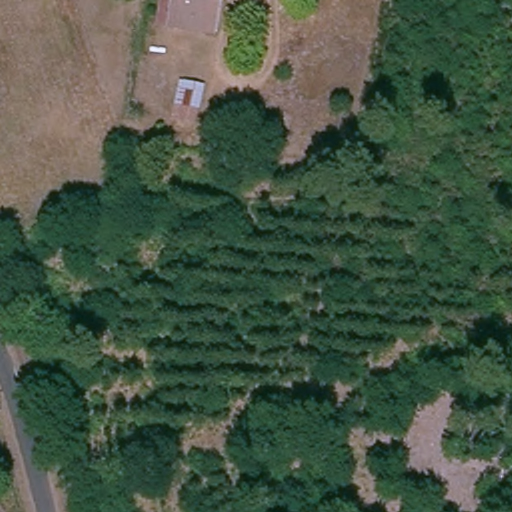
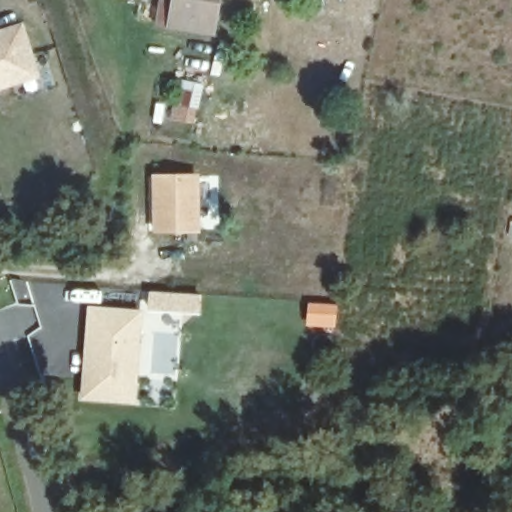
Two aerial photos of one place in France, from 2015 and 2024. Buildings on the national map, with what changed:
unchanged [(216,0),(209,38),(170,30),(155,28),(161,0),(216,0)]
new [(0,31),(23,24),(39,79),(0,90),(0,31)]
new [(152,174),(200,174),(201,233),(154,234),(152,174)]
new [(81,399),(88,307),(142,312),(135,404),(81,399)]

